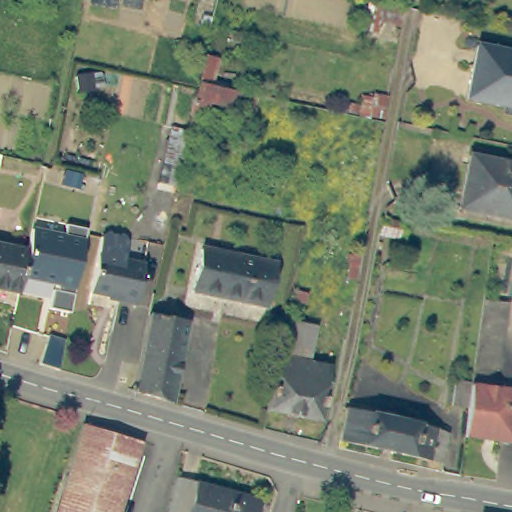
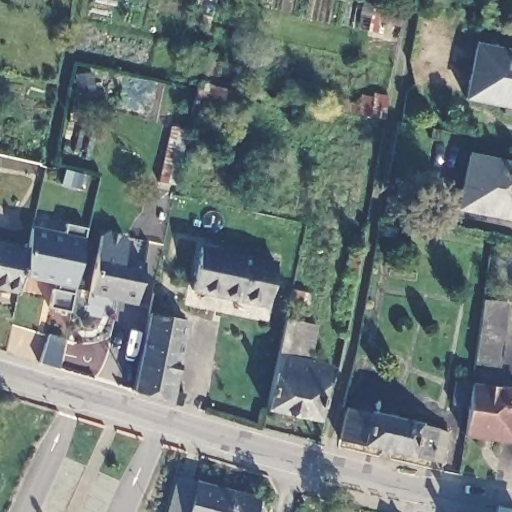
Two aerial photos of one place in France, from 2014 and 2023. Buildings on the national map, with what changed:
unchanged [(373,24),(371,36),(362,34),(368,7),(397,13),(395,28),(373,24)]
unchanged [(465,82),(471,43),(512,51),(512,91),(465,82)]
unchanged [(497,111),(498,103),(462,96),(465,82),(512,91),(512,114),(497,111)]
unchanged [(191,85),(234,94),(231,109),(205,105),(202,121),(184,118),(190,90),(191,85)]
unchanged [(363,117),(367,94),(382,97),(378,120),(363,117)]
new [(172,127),(187,130),(176,186),(159,182),(172,127)]
unchanged [(471,155),(512,163),(512,228),(509,228),(483,224),(485,214),(461,210),(471,155)]
unchanged [(407,225),(405,237),(385,233),(387,221),(407,225)]
unchanged [(67,234),(68,223),(87,228),(70,311),(53,308),(59,284),(29,279),(39,229),(67,234)]
unchanged [(97,235),(102,232),(119,236),(123,241),(119,259),(138,264),(130,303),(112,299),(112,297),(85,291),(97,235)]
unchanged [(19,291),(0,287),(0,243),(29,249),(19,291)]
unchanged [(200,266),(201,261),(204,262),(207,245),(280,261),(271,304),(198,289),(202,267),(200,266)]
unchanged [(506,309),(495,373),(471,369),(481,304),(506,309)]
unchanged [(153,312),(192,321),(173,400),(135,390),(153,312)]
unchanged [(317,323),(309,360),(332,365),(321,416),(270,405),(290,318),(317,323)]
unchanged [(27,367),(34,337),(56,343),(49,373),(27,367)]
unchanged [(469,386),(465,409),(451,406),(454,383),(469,386)]
unchanged [(472,385),(512,391),(512,444),(464,436),(467,418),(472,385)]
unchanged [(442,430),(435,460),(335,438),(343,404),(442,430)]
demolished [(122,512),(60,512),(85,424),(142,439),(122,512)]
unchanged [(262,497),(258,512),(174,512),(177,505),(186,475),(262,497)]

